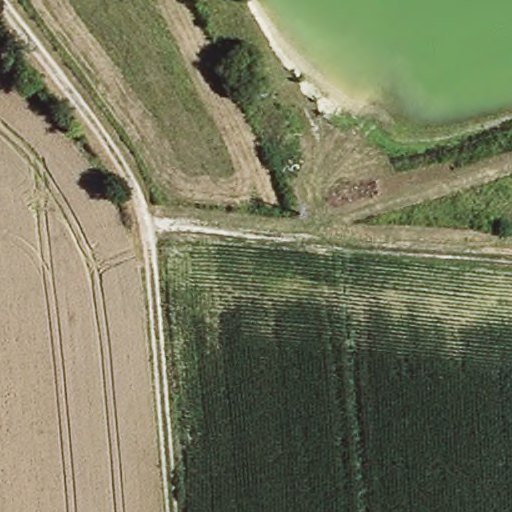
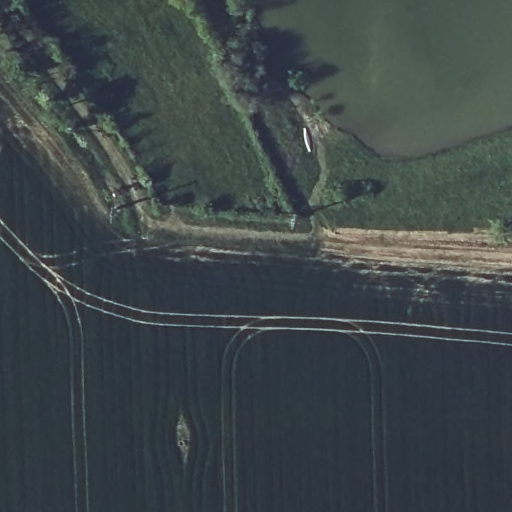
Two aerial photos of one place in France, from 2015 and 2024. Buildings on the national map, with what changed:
[]

